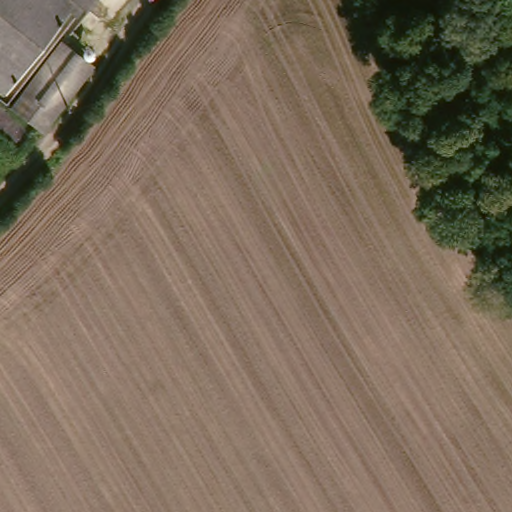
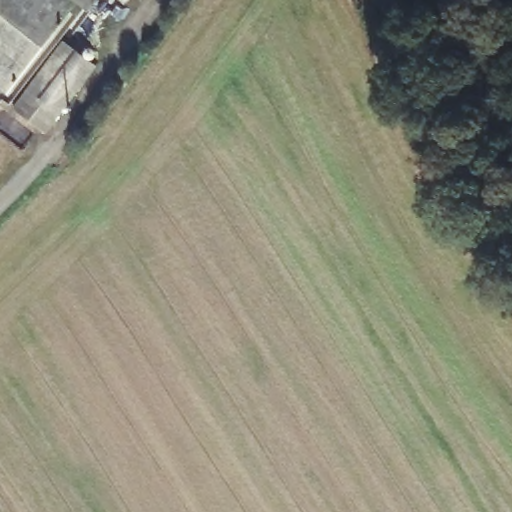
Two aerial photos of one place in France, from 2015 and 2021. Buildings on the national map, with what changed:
unchanged [(77,11),(68,23),(60,16),(0,90),(0,0),(101,0),(86,18),(77,11)]
unchanged [(101,69),(60,119),(29,93),(69,43),(101,69)]

